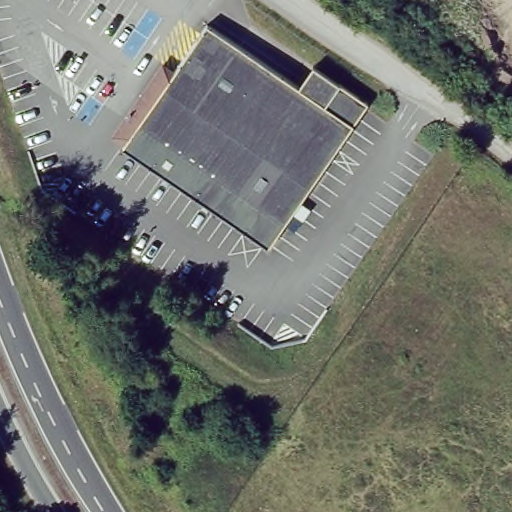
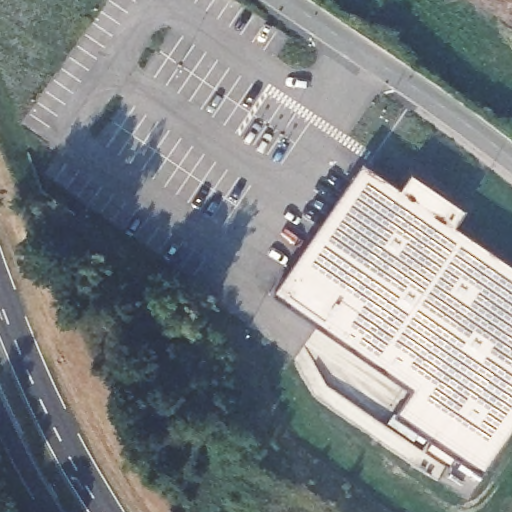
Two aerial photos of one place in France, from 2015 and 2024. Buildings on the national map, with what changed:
demolished [(303,87),(312,93),(314,95),(315,95),(329,75),(343,84),(344,83),(372,103),(357,124),(297,213),(288,225),(272,248),(126,147),(128,144),(179,71),(211,24),(303,87)]
new [(402,191),(415,170),(466,207),(452,226),(512,267),(512,430),(485,468),(401,412),(418,385),(275,291),(365,159),(402,191)]

